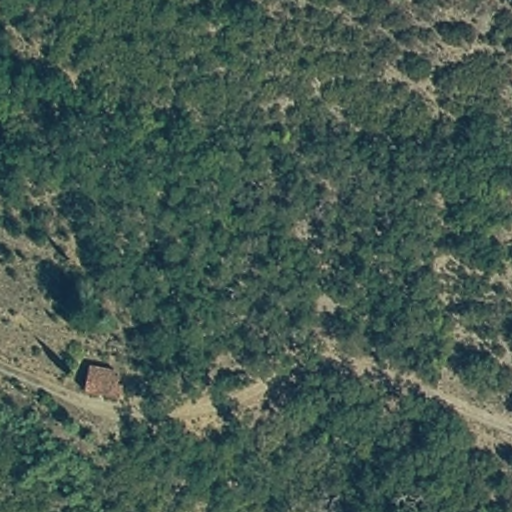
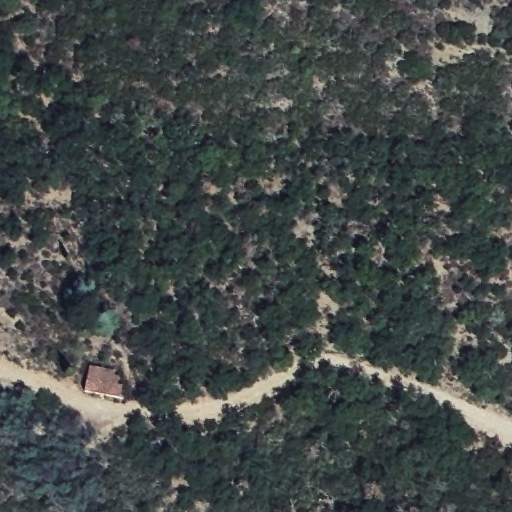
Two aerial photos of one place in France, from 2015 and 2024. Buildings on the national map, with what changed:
unchanged [(124,375),(120,409),(83,396),(88,368),(124,375)]

